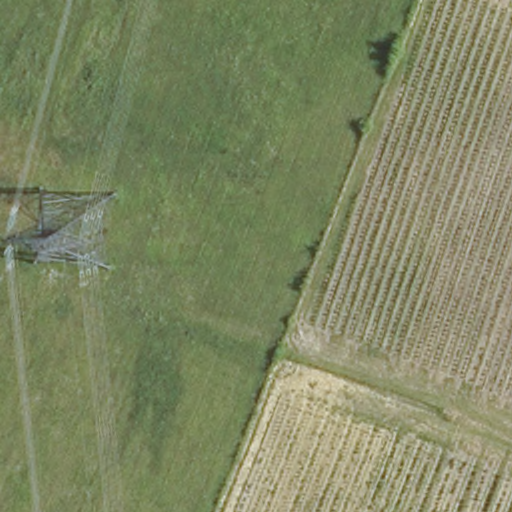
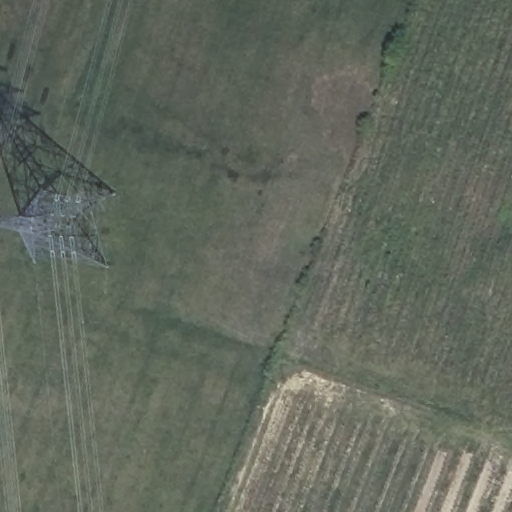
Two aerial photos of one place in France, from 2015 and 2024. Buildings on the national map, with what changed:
[]

